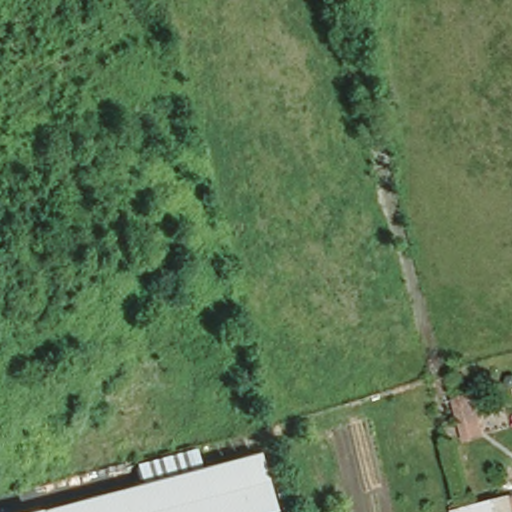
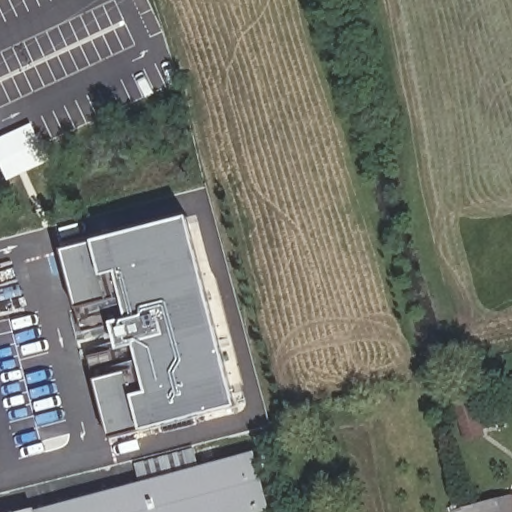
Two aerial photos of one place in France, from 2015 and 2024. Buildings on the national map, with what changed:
new [(0,165),(0,138),(31,125),(50,163),(6,180),(0,165)]
new [(110,438),(96,380),(89,355),(117,347),(111,325),(83,332),(76,308),(62,251),(93,243),(189,218),(237,407),(142,431),(110,438)]
unchanged [(248,449),(264,506),(245,512),(30,512),(248,449)]
unchanged [(468,496),(495,490),(497,500),(499,512),(471,512),(468,496)]

